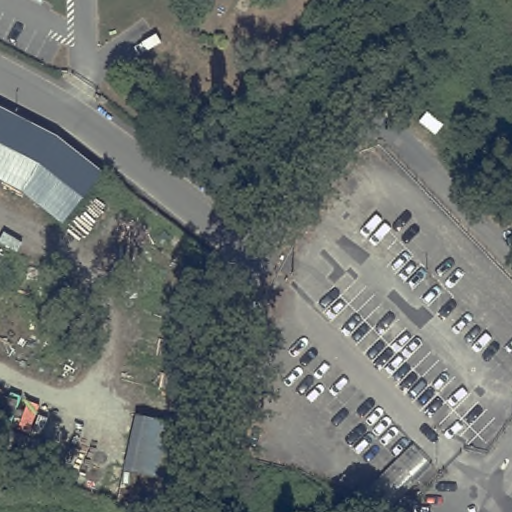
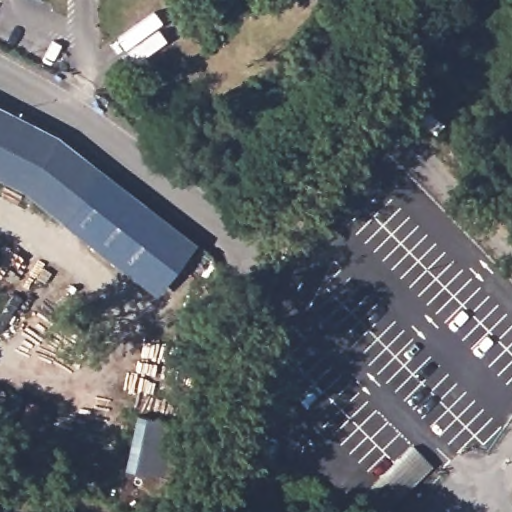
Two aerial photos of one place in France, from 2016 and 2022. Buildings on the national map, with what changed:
unchanged [(55,136),(102,174),(60,224),(20,191),(0,181),(0,108),(55,136)]
new [(193,245),(152,294),(60,224),(102,174),(193,245)]
unchanged [(166,510),(122,501),(135,469),(148,415),(185,425),(166,510)]

